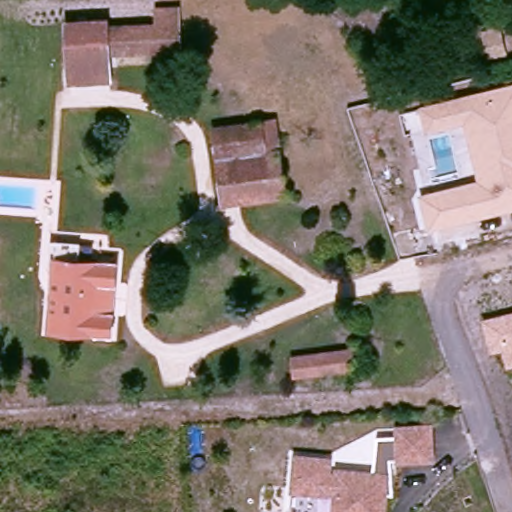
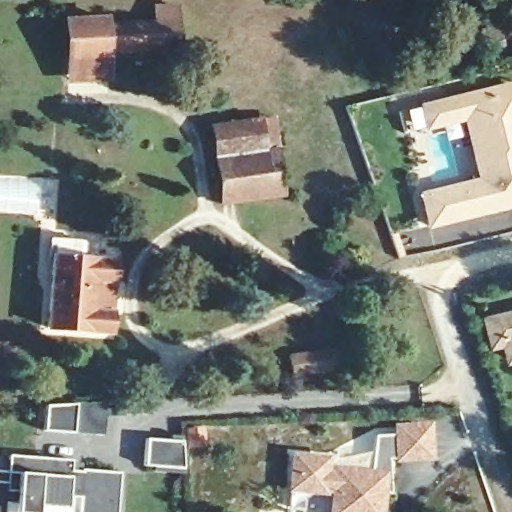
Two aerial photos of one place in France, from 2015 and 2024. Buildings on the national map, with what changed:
unchanged [(69,15),(105,13),(105,20),(160,18),(159,2),(182,2),(183,25),(184,48),(108,51),(108,60),(108,86),(72,87),(71,62),(69,15)]
unchanged [(512,206),(436,224),(432,225),(424,194),(425,194),(483,179),(468,117),(447,122),(442,101),(512,84),(512,206)]
unchanged [(283,120),(294,191),(235,202),(224,129),(283,120)]
unchanged [(224,129),(235,202),(218,205),(205,132),(224,129)]
unchanged [(55,255),(73,257),(115,261),(109,332),(50,328),(55,255)]
unchanged [(501,353),(489,355),(480,320),(512,312),(512,370),(506,371),(501,353)]
unchanged [(362,371),(293,377),(291,354),(361,350),(362,371)]
new [(46,408),(76,405),(106,403),(104,436),(44,433),(46,408)]
unchanged [(404,431),(404,423),(435,425),(434,457),(403,456),(404,431)]
unchanged [(393,455),(392,490),(383,490),(382,512),(334,512),(334,490),(324,490),(324,492),(291,491),(293,458),(326,460),(325,474),(335,475),(336,470),(370,471),(372,433),(394,434),(395,430),(404,431),(403,456),(393,455)]
new [(145,467),(146,440),(182,442),(183,469),(145,467)]
new [(68,508),(36,507),(36,512),(16,512),(16,506),(5,505),(4,512),(0,512),(0,474),(8,474),(9,457),(71,462),(71,473),(81,474),(81,472),(118,475),(117,512),(80,512),(80,498),(68,498),(68,508)]

